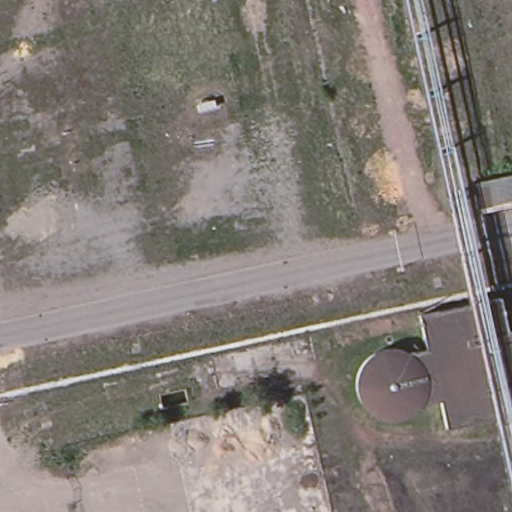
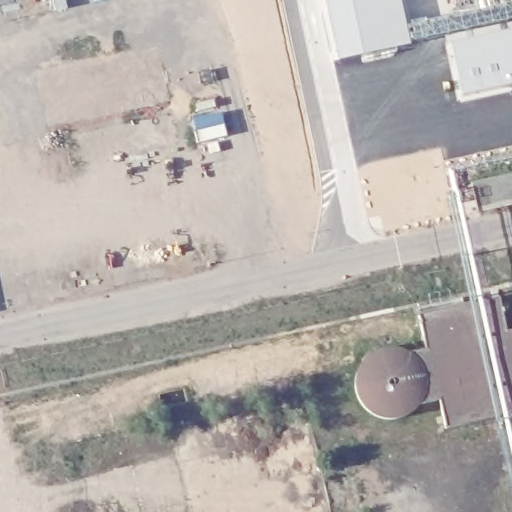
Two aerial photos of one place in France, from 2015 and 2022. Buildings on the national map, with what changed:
new [(340,60),(327,0),(402,0),(412,44),(340,60)]
new [(464,94),(453,41),(512,29),(512,84),(464,94)]
unchanged [(512,173),(512,203),(478,211),(471,182),(512,173)]

